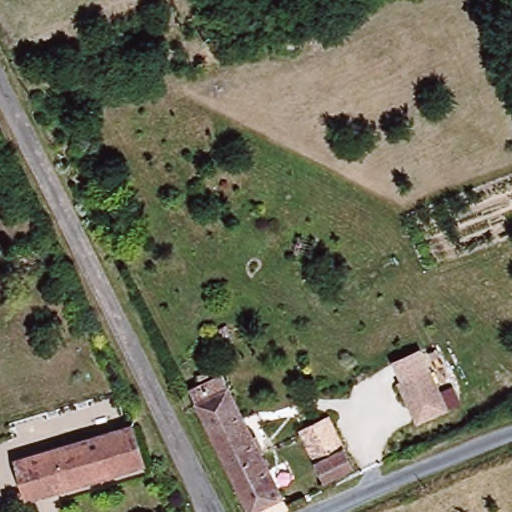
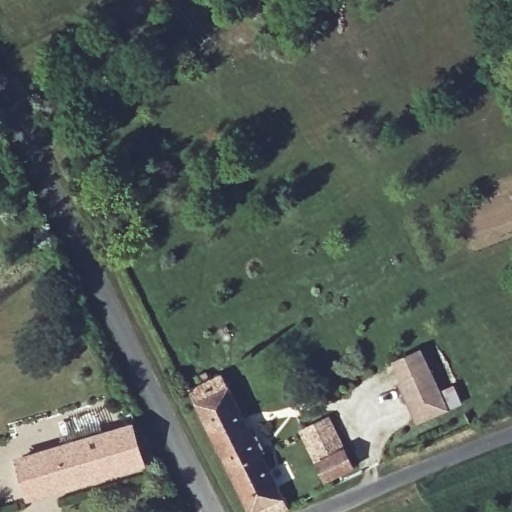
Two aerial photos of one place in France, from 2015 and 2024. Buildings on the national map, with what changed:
unchanged [(453,407),(423,421),(404,384),(435,370),(453,407)]
unchanged [(185,402),(222,383),(284,512),(242,512),(185,402)]
unchanged [(355,467),(331,481),(303,426),(328,414),(355,467)]
unchanged [(26,464),(138,431),(149,467),(36,500),(26,464)]
unchanged [(0,460),(16,454),(26,464),(0,475),(0,460)]

